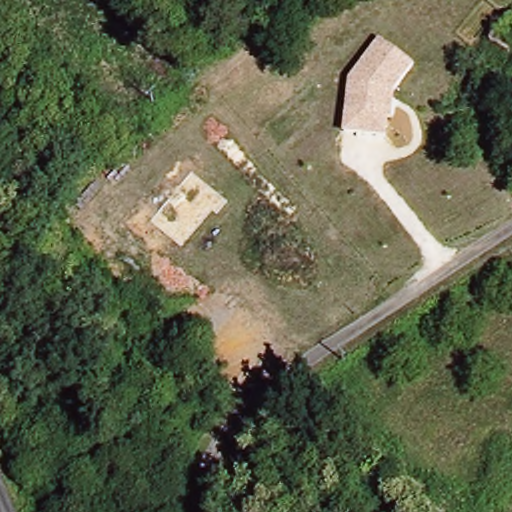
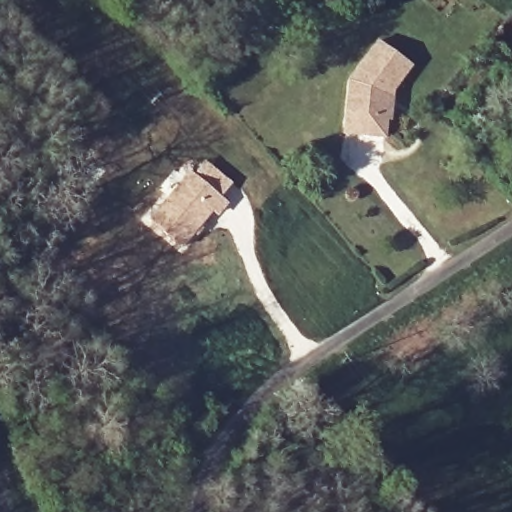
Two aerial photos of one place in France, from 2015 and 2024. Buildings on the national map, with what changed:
unchanged [(350,83),(382,39),(414,63),(390,93),(387,137),(347,135),(350,83)]
new [(219,217),(213,212),(201,225),(204,229),(198,237),(194,234),(183,249),(149,220),(189,170),(228,204),(219,217)]

